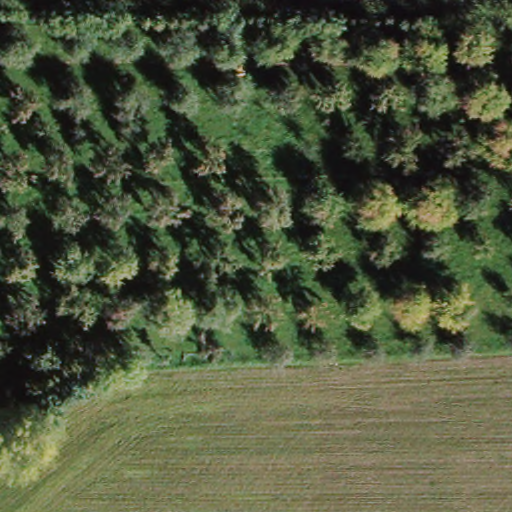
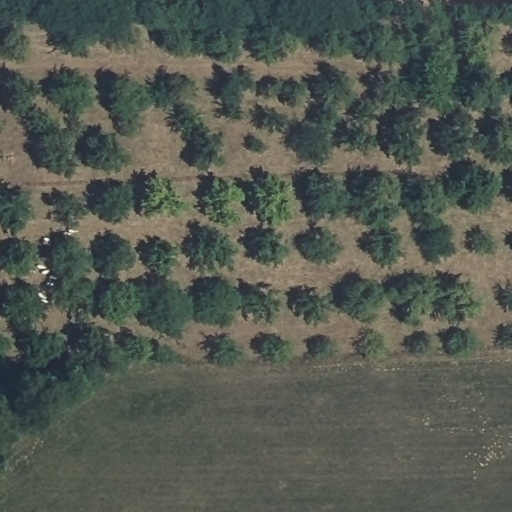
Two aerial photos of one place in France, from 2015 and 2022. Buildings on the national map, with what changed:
[]

